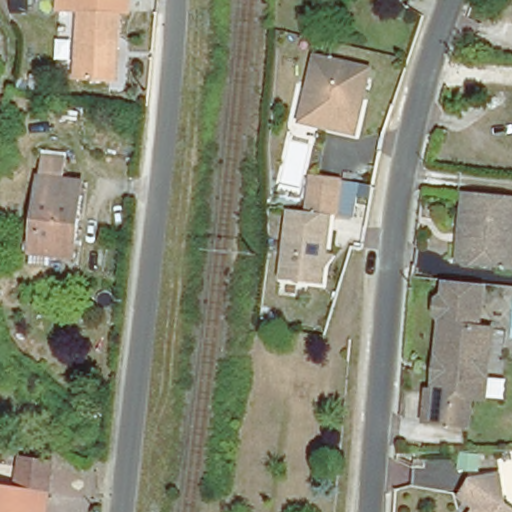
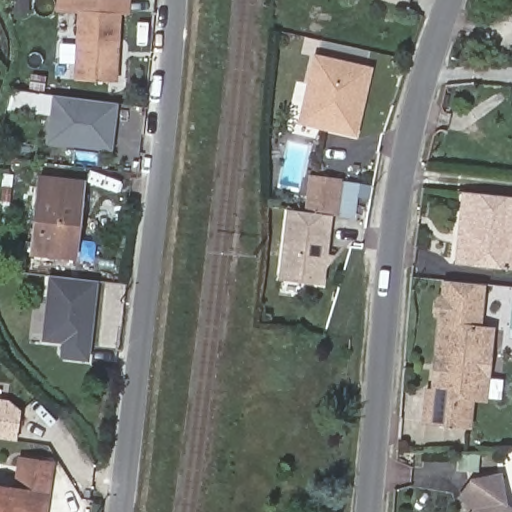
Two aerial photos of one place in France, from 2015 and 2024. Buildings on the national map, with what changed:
unchanged [(121,13),(118,81),(73,79),(77,11),(121,13)]
unchanged [(298,122),(303,107),(317,57),(322,59),(370,72),(352,137),(317,127),(315,127),(298,122)]
new [(52,95),(119,104),(113,151),(46,144),(52,95)]
unchanged [(66,178),(85,180),(77,255),(35,251),(42,176),(66,178)]
new [(313,179),(340,181),(338,214),(310,212),(313,179)]
unchanged [(512,191),(512,264),(457,257),(459,238),(460,231),(465,186),(512,191)]
unchanged [(335,216),(328,288),(279,283),(288,212),(335,216)]
new [(100,281),(91,361),(60,357),(62,342),(42,341),(49,276),(100,281)]
unchanged [(464,430),(420,426),(423,396),(428,397),(429,387),(432,362),(435,321),(430,317),(431,306),(437,302),(439,286),(449,286),(463,287),(478,289),(474,333),(487,334),(482,384),(481,402),(467,401),(464,430)]
new [(15,401),(14,406),(21,407),(16,440),(0,438),(0,398),(15,401)]
unchanged [(17,493),(21,464),(52,468),(47,512),(0,512),(0,491),(17,493)]
unchanged [(460,499),(472,483),(501,480),(504,508),(501,512),(474,512),(475,512),(460,499)]

